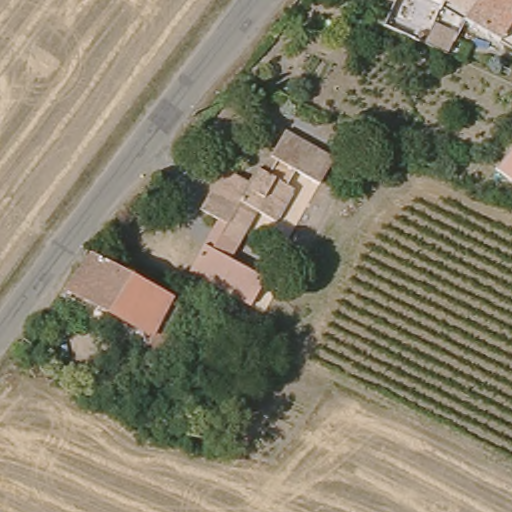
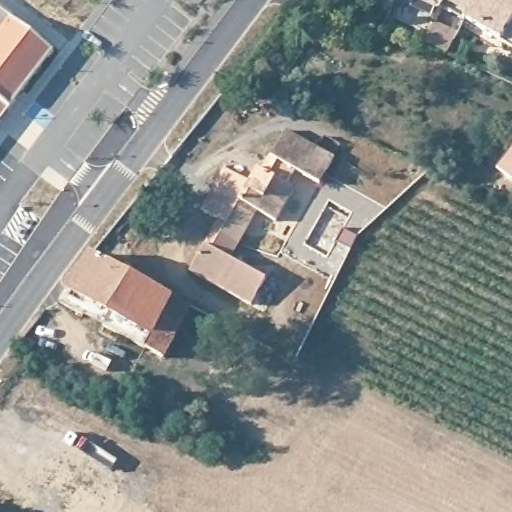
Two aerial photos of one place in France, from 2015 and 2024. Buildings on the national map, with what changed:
unchanged [(427,1),(426,4),(414,0),(428,0),(427,1)]
unchanged [(457,15),(427,1),(428,0),(470,0),(457,15)]
unchanged [(508,38),(503,36),(457,15),(470,0),(512,0),(512,33),(508,38)]
new [(0,9),(58,54),(12,113),(0,103),(0,9)]
new [(4,123),(0,120),(0,103),(12,113),(4,123)]
new [(0,120),(4,123),(0,129),(0,120)]
unchanged [(217,238),(224,225),(199,211),(221,173),(247,185),(256,170),(268,176),(278,159),(272,155),(289,128),(321,145),(317,151),(337,163),(324,186),(301,174),(292,190),(301,194),(282,224),(261,215),(255,225),(241,251),(217,238)]
unchanged [(483,182),(512,146),(512,196),(483,182)]
unchanged [(265,305),(252,298),(190,264),(206,238),(267,272),(280,280),(265,305)]
unchanged [(120,266),(177,296),(165,318),(154,337),(68,289),(92,252),(120,266)]

